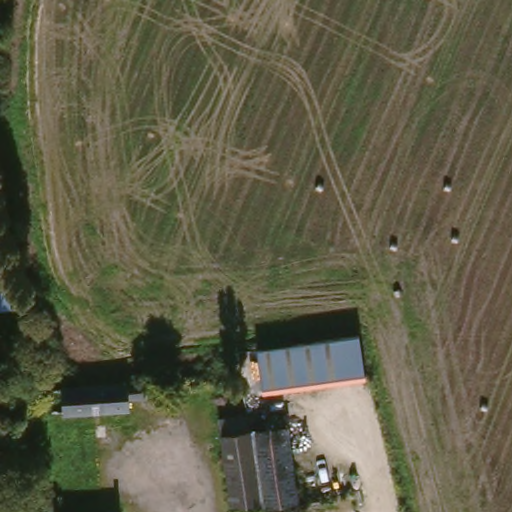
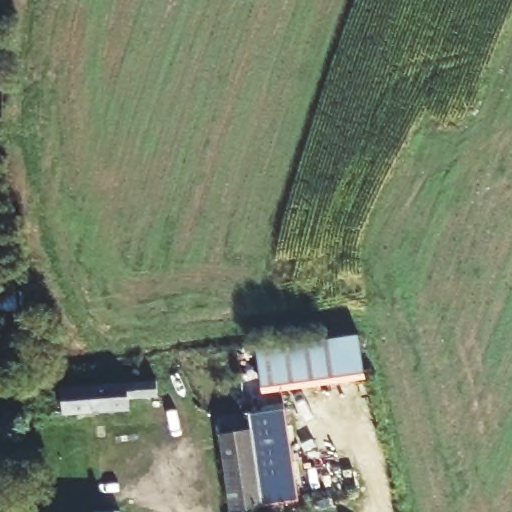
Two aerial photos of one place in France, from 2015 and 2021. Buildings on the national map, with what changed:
unchanged [(358,328),(363,365),(263,380),(258,342),(358,328)]
unchanged [(69,414),(69,412),(67,390),(67,387),(149,381),(162,380),(162,396),(134,398),(135,410),(69,414)]
unchanged [(268,501),(237,506),(224,413),(255,408),(257,428),(268,501)]
unchanged [(304,495),(268,501),(257,428),(293,423),(304,495)]

